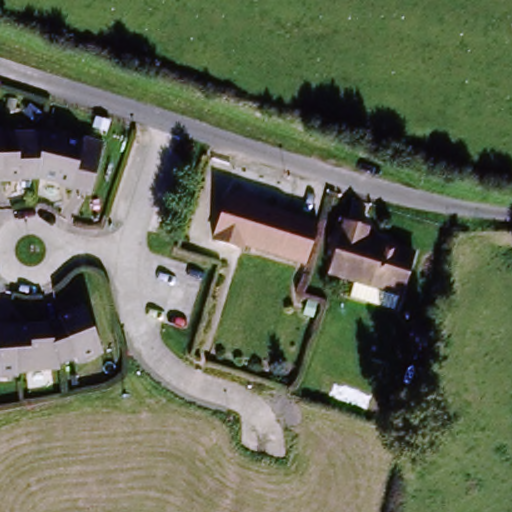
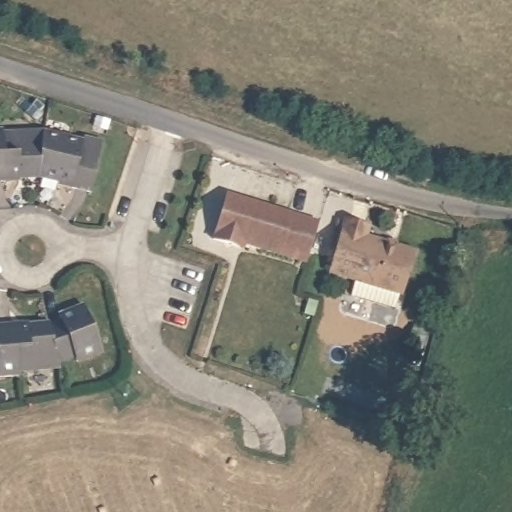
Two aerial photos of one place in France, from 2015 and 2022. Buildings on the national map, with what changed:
unchanged [(0,143),(39,135),(76,139),(77,134),(93,135),(88,186),(71,185),(72,180),(40,175),(6,181),(7,185),(0,186),(0,143)]
unchanged [(301,265),(230,245),(228,249),(205,242),(218,197),(313,226),(301,265)]
unchanged [(351,298),(355,281),(330,274),(344,220),(367,226),(365,236),(415,250),(403,295),(400,294),(396,310),(351,298)]
unchanged [(68,313),(70,317),(84,312),(97,346),(70,360),(55,323),(54,319),(68,313)]
unchanged [(41,330),(55,323),(70,360),(51,367),(15,370),(15,374),(0,374),(0,329),(10,328),(11,331),(41,330)]

